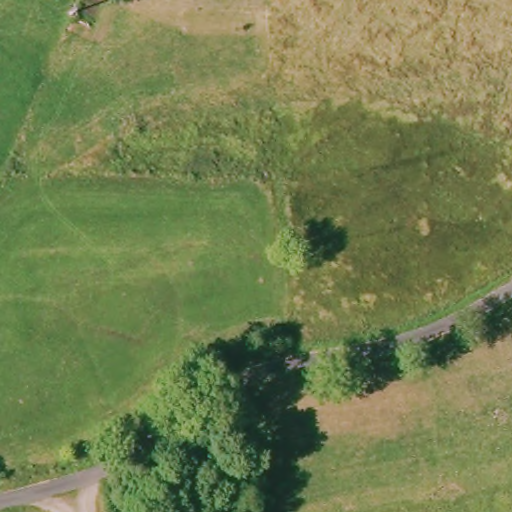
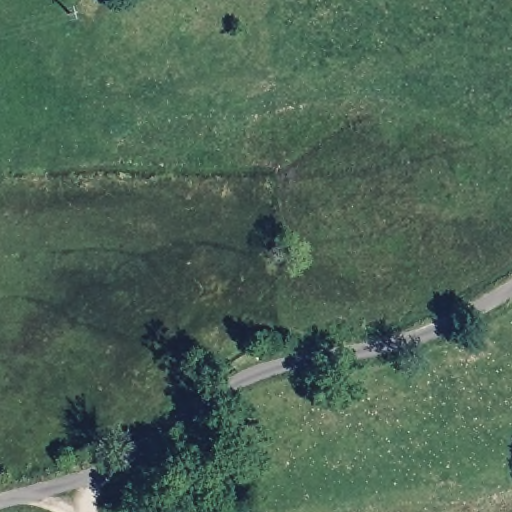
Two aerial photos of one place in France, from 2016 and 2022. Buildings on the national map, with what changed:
[]

